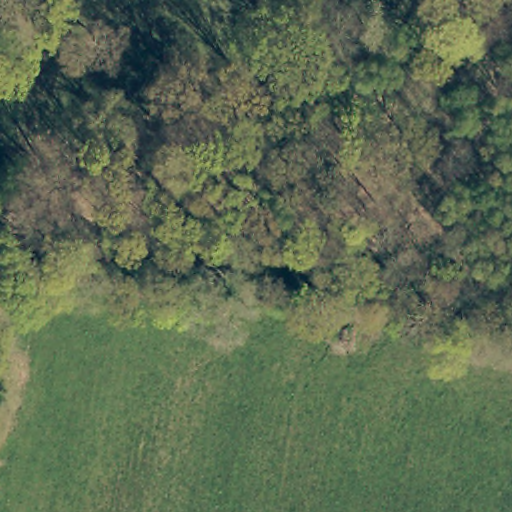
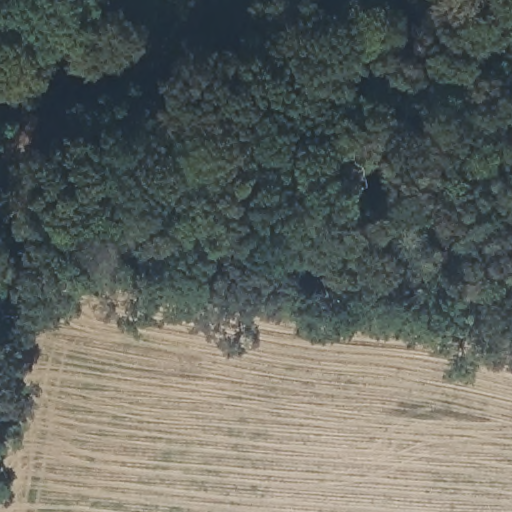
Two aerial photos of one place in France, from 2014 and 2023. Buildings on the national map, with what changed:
[]

